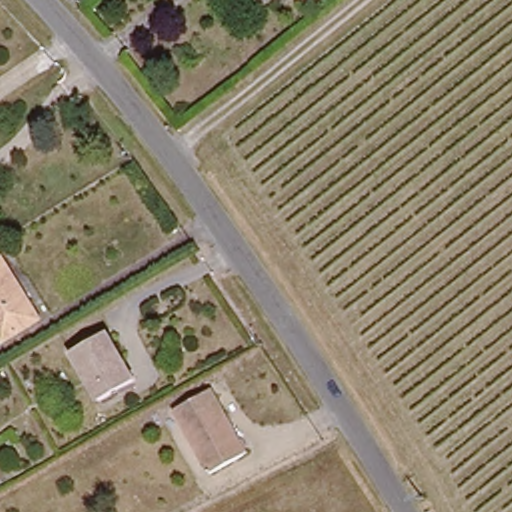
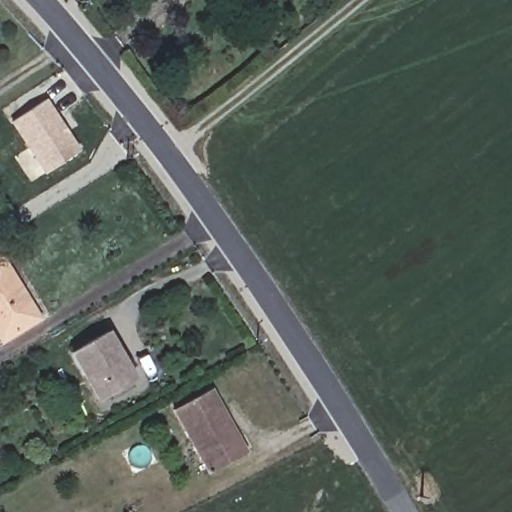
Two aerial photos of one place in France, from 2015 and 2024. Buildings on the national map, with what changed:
unchanged [(258,0),(269,0),(262,6),(258,0)]
new [(47,99),(81,150),(48,172),(15,120),(47,99)]
unchanged [(5,340),(0,332),(0,257),(39,318),(5,340)]
unchanged [(101,399),(72,351),(107,331),(135,379),(101,399)]
unchanged [(175,411),(211,391),(244,451),(209,470),(175,411)]

